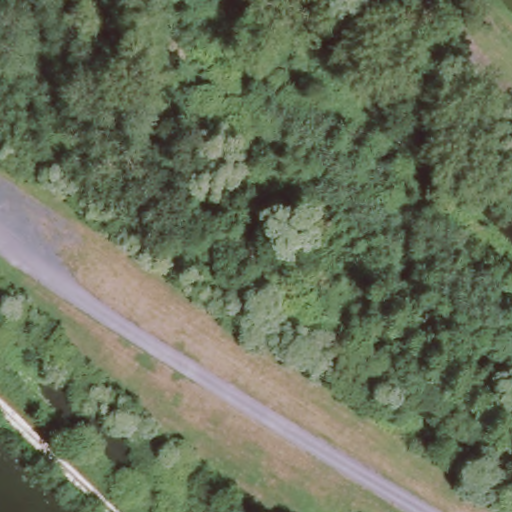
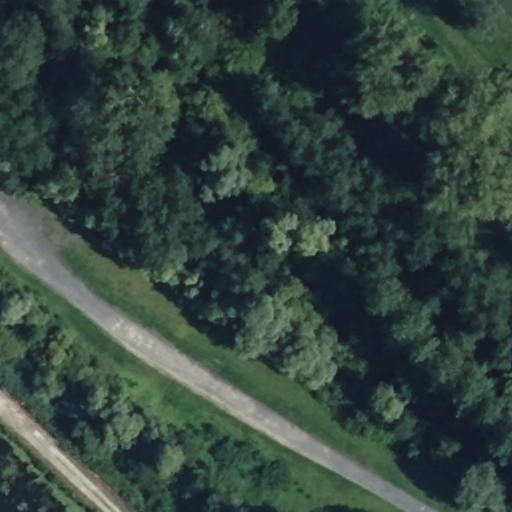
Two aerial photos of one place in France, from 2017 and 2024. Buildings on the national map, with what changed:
unchanged [(276,48),(282,41),(290,47),(283,54),(276,48)]

